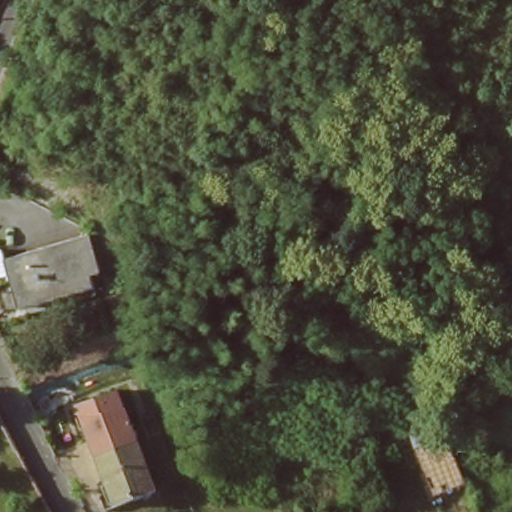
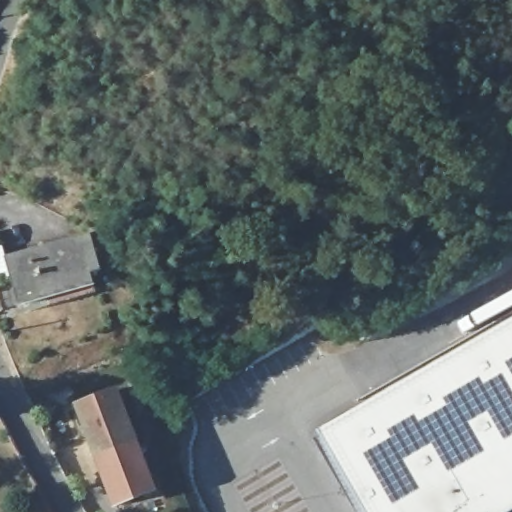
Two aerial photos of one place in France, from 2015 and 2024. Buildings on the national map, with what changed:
unchanged [(0,254),(70,229),(83,265),(28,286),(23,271),(0,279),(0,254)]
new [(365,512),(319,431),(512,318),(512,512),(365,512)]
unchanged [(77,406),(118,389),(136,440),(155,491),(113,507),(98,465),(77,406)]
demolished [(441,421),(471,486),(433,499),(407,432),(441,421)]

